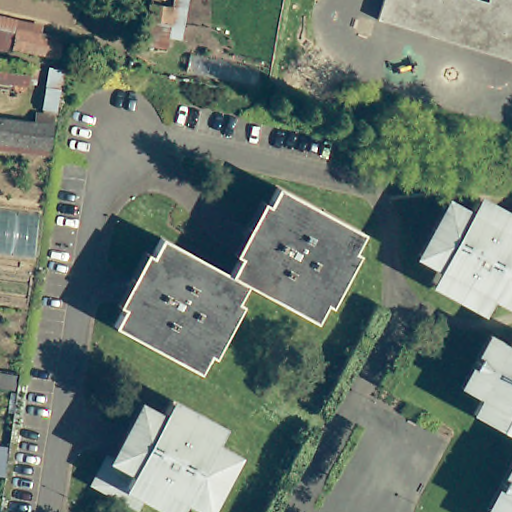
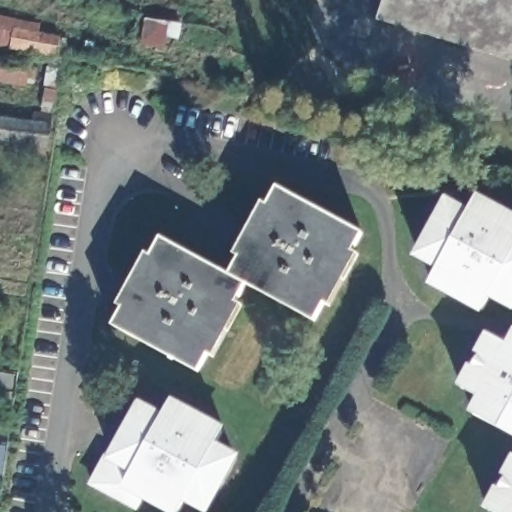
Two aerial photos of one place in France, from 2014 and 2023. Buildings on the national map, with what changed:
unchanged [(171,39),(170,48),(142,46),(146,0),(189,0),(184,39),(171,39)]
unchanged [(433,39),(375,20),(382,0),(512,0),(512,64),(433,39)]
unchanged [(41,31),(51,34),(46,57),(0,48),(0,12),(43,20),(41,31)]
unchanged [(30,85),(0,82),(0,71),(1,61),(31,64),(30,85)]
unchanged [(47,145),(0,141),(0,120),(49,125),(47,145)]
unchanged [(360,235),(351,253),(355,255),(327,308),(322,306),(312,325),(269,300),(244,286),(234,305),(239,307),(210,360),(205,356),(195,374),(111,327),(120,310),(115,307),(143,254),(149,256),(158,239),(226,276),(236,258),(231,255),(246,227),(260,202),(265,205),(274,188),(360,235)]
unchanged [(512,223),(512,309),(493,300),(485,313),(433,286),(441,271),(418,259),(447,207),(469,219),(476,205),(512,223)]
new [(32,259),(0,255),(0,209),(38,213),(32,259)]
unchanged [(470,414),(476,400),(457,388),(468,365),(474,367),(479,355),(474,352),(484,329),(508,344),(512,337),(512,436),(470,414)]
unchanged [(19,386),(0,385),(0,376),(0,372),(20,375),(19,386)]
unchanged [(211,512),(188,501),(182,512),(174,512),(145,497),(143,511),(91,483),(109,451),(114,455),(142,397),(167,411),(177,394),(230,423),(224,440),(245,452),(213,512),(211,512)]
unchanged [(4,476),(0,476),(0,450),(6,451),(4,476)]
unchanged [(493,487),(499,490),(504,475),(500,473),(510,451),(512,452),(512,512),(487,512),(483,510),(493,487)]

